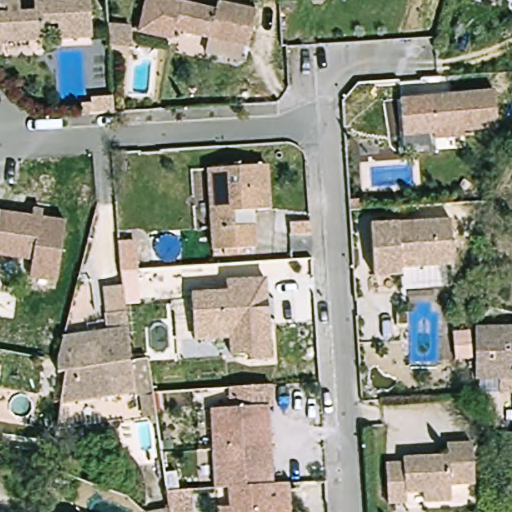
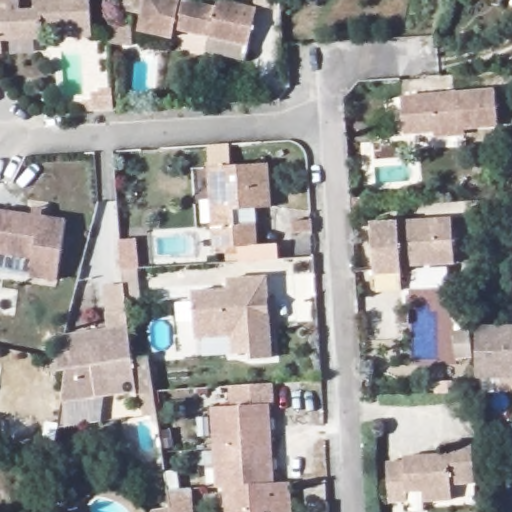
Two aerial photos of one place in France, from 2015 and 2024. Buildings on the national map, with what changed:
unchanged [(0,11),(2,11),(1,0),(22,0),(23,12),(38,11),(37,0),(93,0),(94,38),(61,38),(61,23),(45,23),(46,39),(3,40),(3,57),(0,57),(0,11)]
unchanged [(259,5),(252,42),(173,28),(172,37),(135,31),(138,0),(203,0),(210,1),(210,0),(254,0),(260,1),(259,5)]
unchanged [(497,125),(404,131),(402,95),(495,89),(497,125)]
unchanged [(252,242),(233,244),(234,249),(222,251),(222,245),(214,246),(205,165),(264,159),(269,203),(248,205),(250,219),(252,242)]
unchanged [(365,205),(350,206),(350,196),(364,195),(365,205)]
unchanged [(71,219),(63,279),(58,279),(35,277),(38,258),(0,252),(0,209),(3,210),(71,219)]
unchanged [(454,215),(456,261),(402,264),(403,271),(375,272),(373,220),(454,215)]
unchanged [(0,252),(38,258),(35,277),(34,283),(0,278),(0,252)]
unchanged [(274,359),(233,362),(232,338),(193,340),(192,293),(227,291),(227,279),(269,277),(274,359)]
unchanged [(512,314),(512,347),(479,342),(484,309),(512,314)]
unchanged [(65,401),(69,369),(62,369),(61,360),(67,333),(131,327),(133,348),(137,395),(65,401)]
unchanged [(500,362),(478,358),(479,342),(512,347),(512,379),(498,377),(500,362)]
unchanged [(230,506),(229,487),(218,488),(213,407),(231,406),(232,385),(273,384),(278,483),(295,482),(296,512),(219,512),(219,506),(230,506)]
unchanged [(406,498),(389,499),(386,460),(404,459),(404,454),(449,452),(448,440),(473,439),(475,483),(450,484),(452,499),(425,501),(424,490),(405,491),(406,498)]
unchanged [(180,512),(154,512),(179,508),(180,512)]

